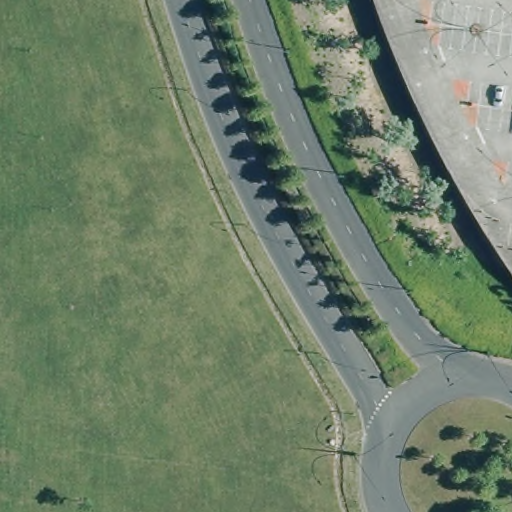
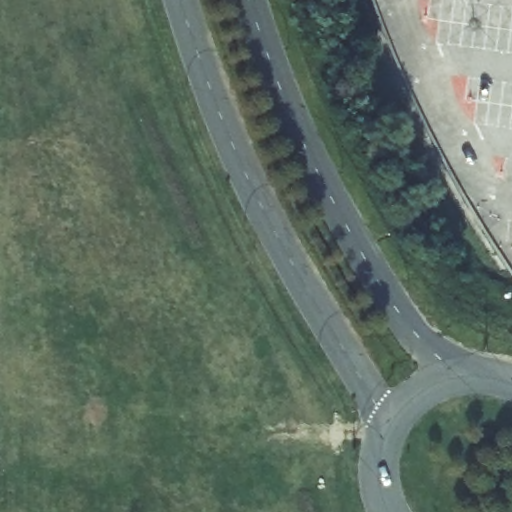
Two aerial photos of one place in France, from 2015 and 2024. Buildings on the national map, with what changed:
unchanged [(502,262),(462,196),(433,142),(407,86),(390,48),(376,9),(373,0),(512,0),(512,275),(502,262)]

